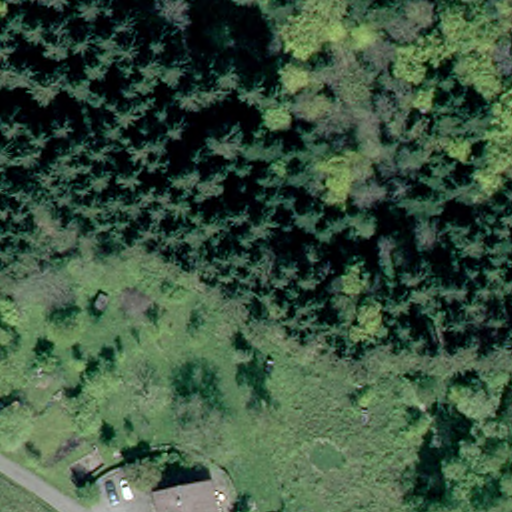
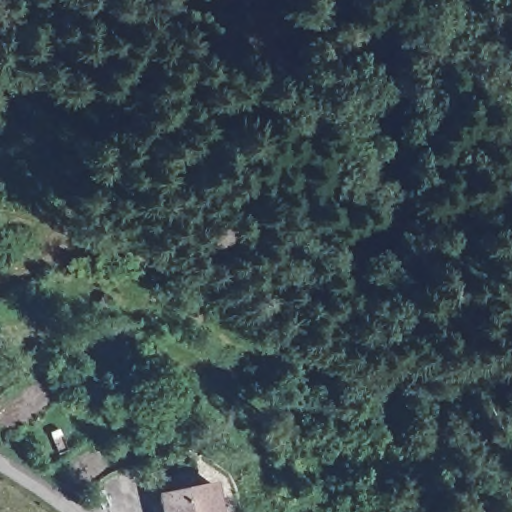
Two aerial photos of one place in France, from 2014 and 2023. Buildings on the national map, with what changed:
unchanged [(209,481),(217,512),(161,512),(156,491),(209,481)]

